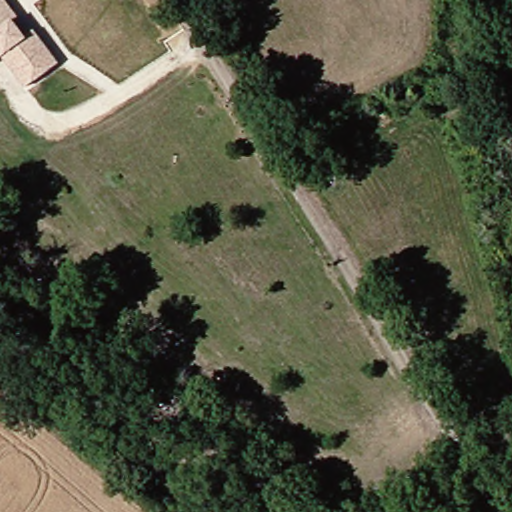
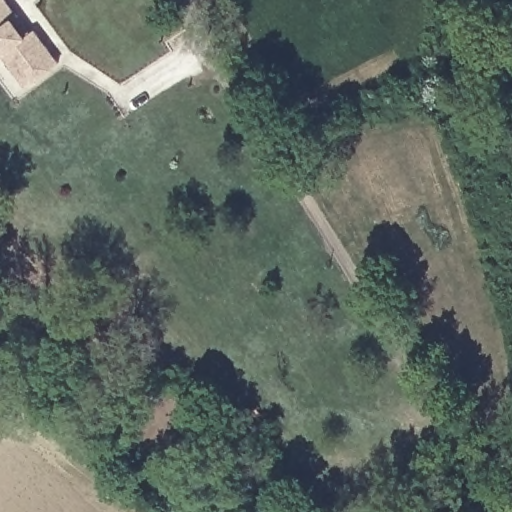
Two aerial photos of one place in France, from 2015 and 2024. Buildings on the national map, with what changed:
unchanged [(1,1),(15,19),(10,23),(24,39),(33,31),(60,64),(28,89),(4,58),(0,61),(0,2),(1,1)]

